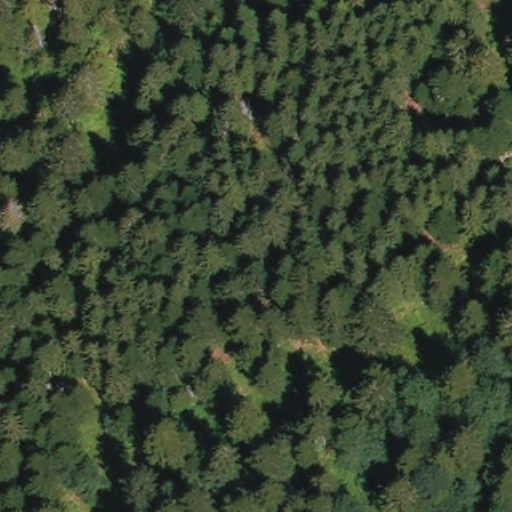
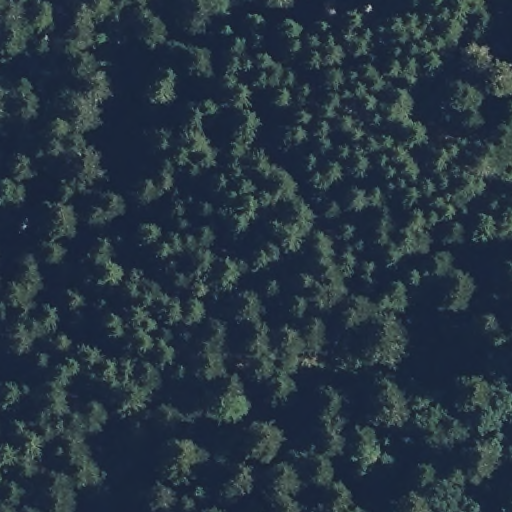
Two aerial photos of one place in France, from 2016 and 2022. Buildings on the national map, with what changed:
unchanged [(505,156),(512,151),(512,168),(505,156)]

